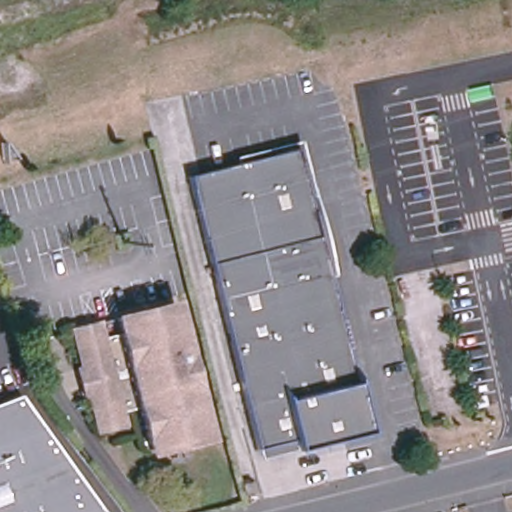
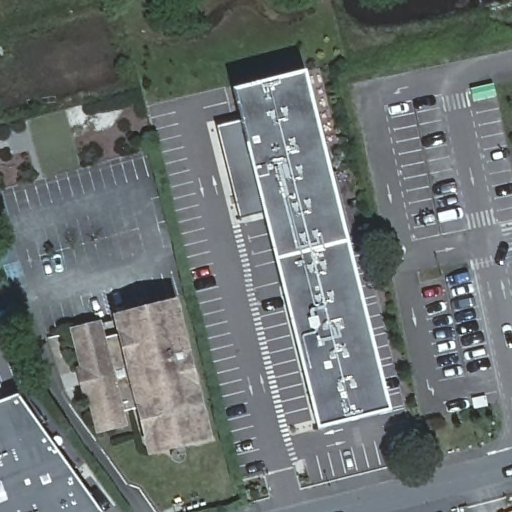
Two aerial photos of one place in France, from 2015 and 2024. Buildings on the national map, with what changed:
new [(317,428),(263,212),(239,219),(216,125),(240,120),(234,90),(305,72),(388,410),(317,428)]
demolished [(368,431),(295,450),(293,440),(256,450),(188,176),(297,149),(319,236),(325,235),(333,265),(326,266),(368,431)]
unchanged [(78,368),(81,367),(72,330),(100,323),(103,337),(120,333),(116,317),(174,303),(208,437),(150,451),(139,407),(121,411),(125,424),(97,430),(90,395),(85,396),(78,368)]
unchanged [(102,512),(0,512),(0,401),(17,395),(102,512)]

